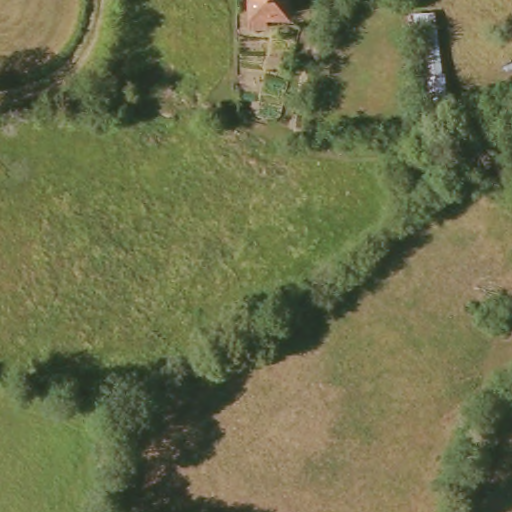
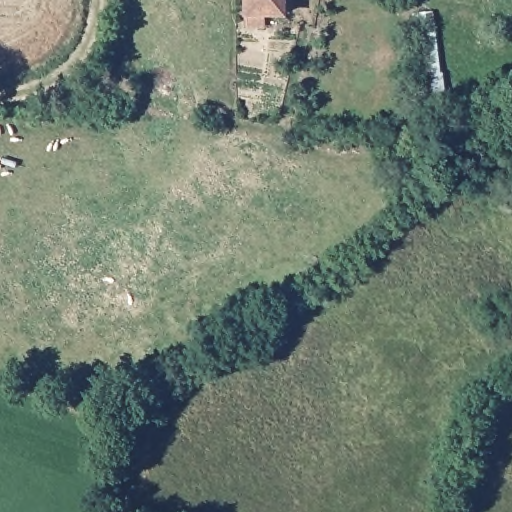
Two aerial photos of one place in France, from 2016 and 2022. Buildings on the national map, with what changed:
unchanged [(258,11),(258,0),(287,0),(287,13),(258,11)]
unchanged [(439,13),(450,111),(426,114),(414,11),(439,13)]

